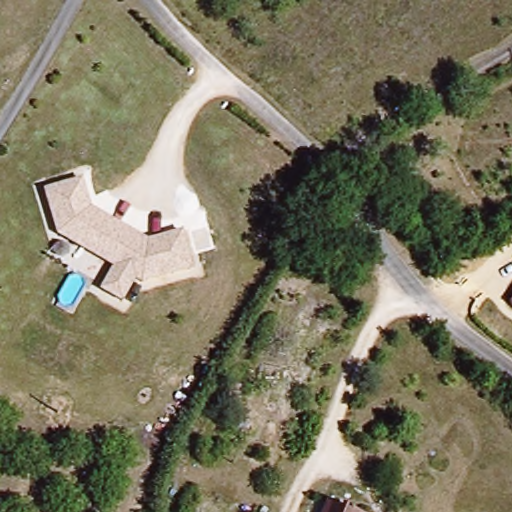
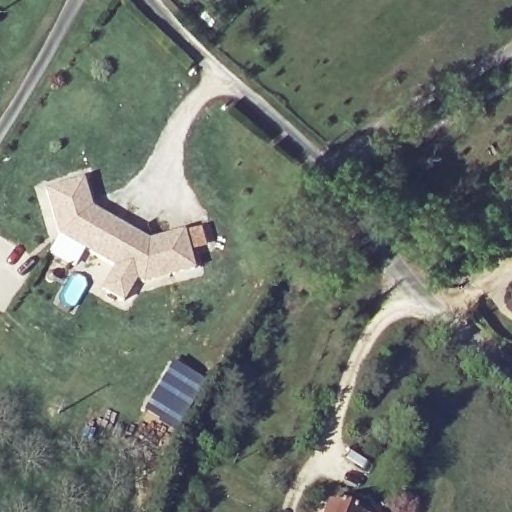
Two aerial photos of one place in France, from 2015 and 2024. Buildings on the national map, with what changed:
unchanged [(192,268),(145,282),(136,278),(122,301),(100,287),(114,265),(55,231),(40,189),(77,177),(90,208),(147,240),(180,230),(192,268)]
unchanged [(512,299),(512,301),(511,300),(512,299)]
new [(177,430),(145,410),(174,363),(205,381),(177,430)]
unchanged [(360,512),(333,512),(337,505),(360,512)]

